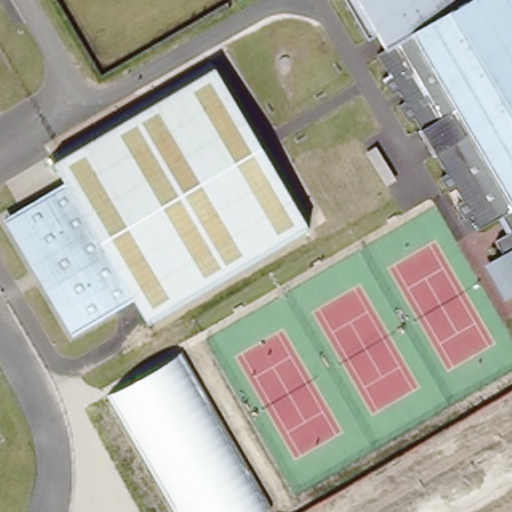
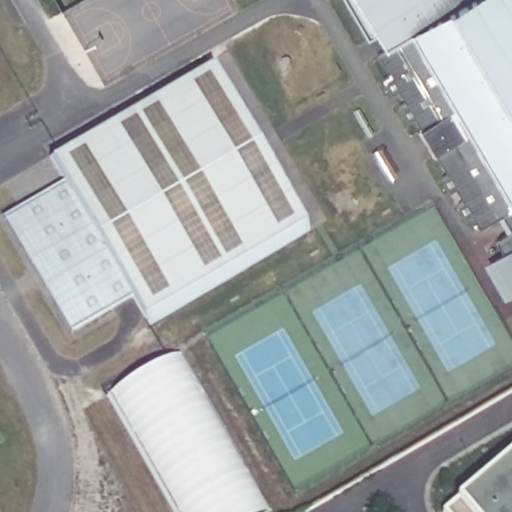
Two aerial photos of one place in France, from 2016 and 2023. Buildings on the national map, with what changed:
unchanged [(465,215),(457,200),(463,196),(456,184),(450,187),(441,173),(447,169),(414,112),(407,117),(399,101),(405,97),(398,86),(392,90),(382,74),(389,70),(377,50),(386,45),(377,30),(368,36),(347,0),(512,0),(512,286),(510,287),(492,256),(504,250),(496,236),(512,227),(502,211),(480,225),(472,211),(465,215)]
unchanged [(52,275),(57,272),(52,263),(47,266),(35,263),(10,220),(67,186),(50,156),(211,62),(311,231),(150,326),(132,296),(75,330),(49,287),(52,275)]
unchanged [(97,386),(173,342),(259,491),(265,501),(245,512),(169,512),(97,386)]
new [(459,500),(512,454),(512,512),(444,512),(459,500)]

